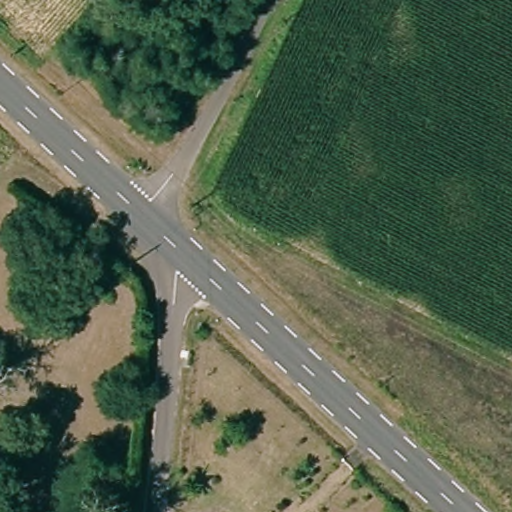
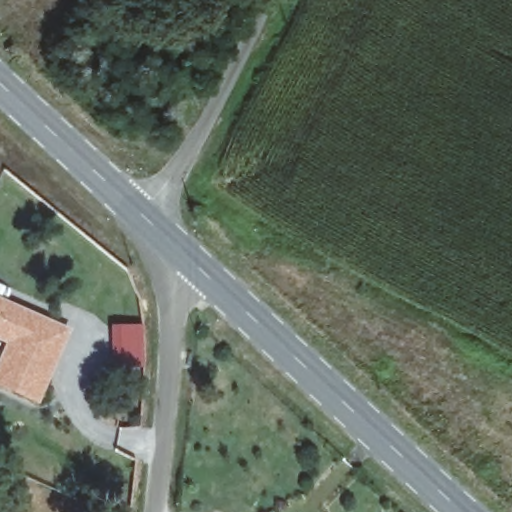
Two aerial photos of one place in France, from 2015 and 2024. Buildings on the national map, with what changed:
new [(71,329),(38,406),(0,389),(0,354),(4,344),(0,341),(0,297),(71,329)]
new [(142,325),(142,374),(112,374),(110,325),(142,325)]
new [(118,427),(143,427),(143,433),(150,433),(148,458),(116,446),(118,427)]

